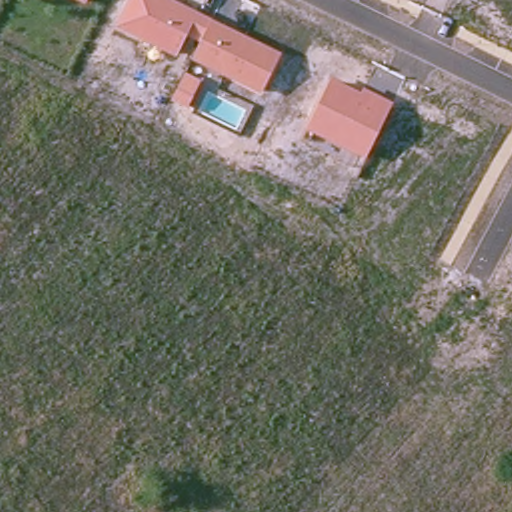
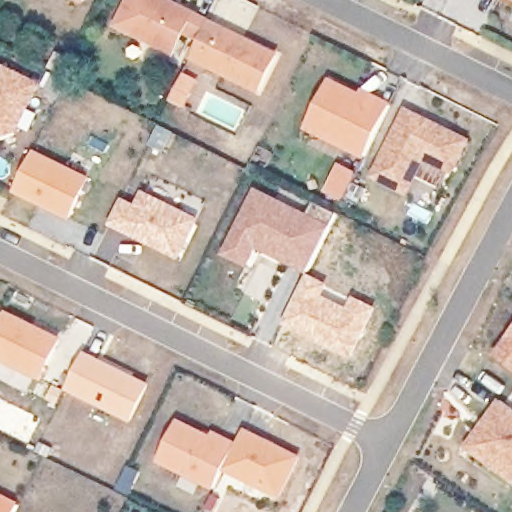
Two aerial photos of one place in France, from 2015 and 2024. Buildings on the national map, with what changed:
unchanged [(75,0),(88,0),(85,5),(75,0)]
unchanged [(190,60),(199,42),(188,36),(177,59),(115,27),(128,0),(170,0),(281,54),(262,95),(190,60)]
new [(20,133),(6,139),(0,136),(0,64),(42,85),(20,133)]
unchanged [(306,130),(330,79),(361,92),(362,87),(392,101),(365,159),(306,130)]
new [(372,180),(406,109),(472,140),(456,175),(427,162),(410,196),(372,180)]
new [(36,152),(92,179),(72,220),(15,194),(36,152)]
new [(225,256),(256,190),(331,227),(308,274),(257,250),(250,268),(225,256)]
new [(124,200),(139,205),(144,192),(200,220),(181,260),(112,226),(124,200)]
new [(324,296),(347,307),(352,297),(377,309),(353,359),(283,325),(307,275),(328,285),(324,296)]
new [(64,340),(44,381),(0,361),(0,329),(9,312),(64,340)]
new [(501,353),(512,342),(512,362),(501,353)]
new [(80,396),(96,363),(150,389),(133,423),(80,396)]
new [(468,450),(503,404),(512,411),(512,481),(468,450)]
new [(159,463),(179,421),(213,437),(215,432),(238,443),(214,491),(159,463)]
new [(227,472),(247,430),(303,458),(283,501),(227,472)]
new [(17,512),(0,512),(0,494),(21,505),(17,512)]

